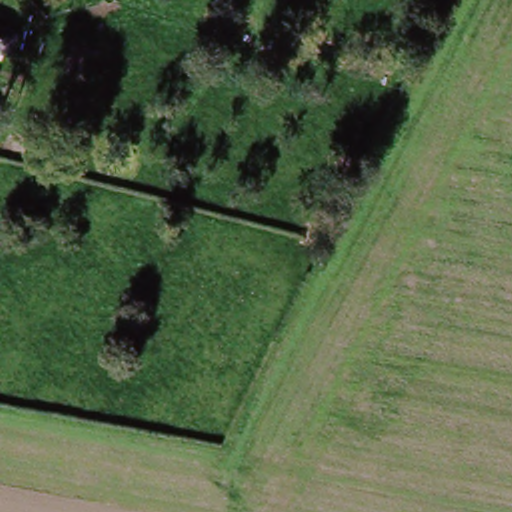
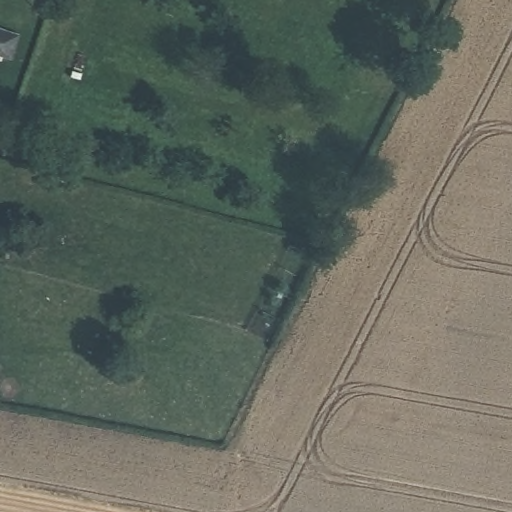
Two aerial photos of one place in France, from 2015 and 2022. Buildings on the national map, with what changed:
unchanged [(2,58),(0,57),(0,33),(10,37),(2,58)]

